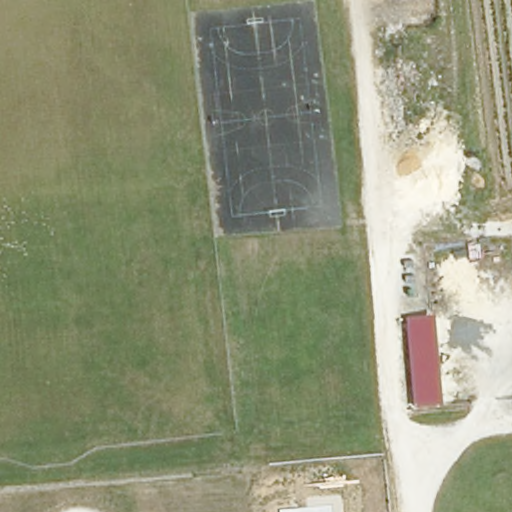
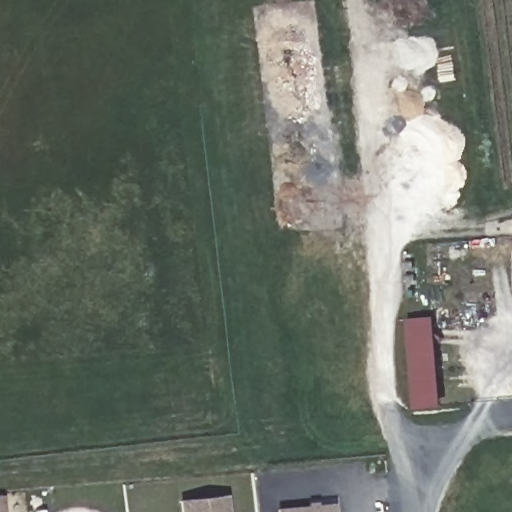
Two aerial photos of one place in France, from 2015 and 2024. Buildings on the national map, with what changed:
unchanged [(445,407),(415,409),(406,318),(437,315),(445,407)]
new [(3,494),(5,512),(0,512),(0,494),(3,494)]
new [(227,494),(229,512),(180,512),(179,499),(227,494)]
unchanged [(280,512),(280,510),(332,504),(332,512),(280,512)]

